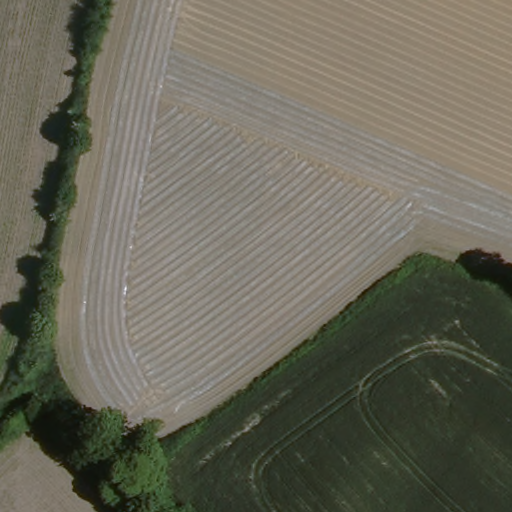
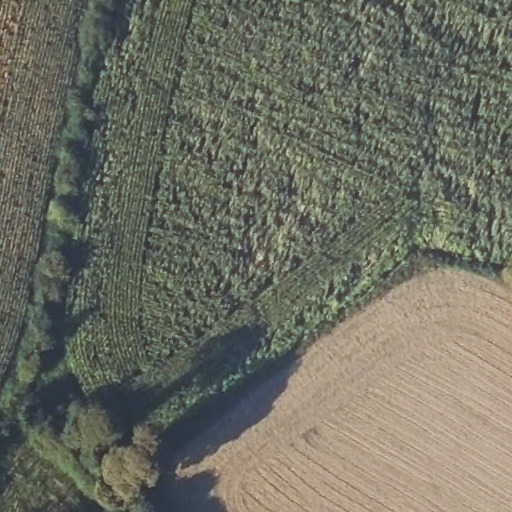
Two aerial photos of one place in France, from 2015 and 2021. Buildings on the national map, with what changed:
[]

